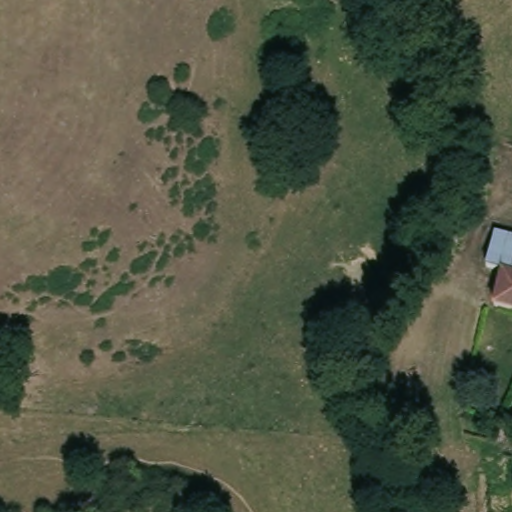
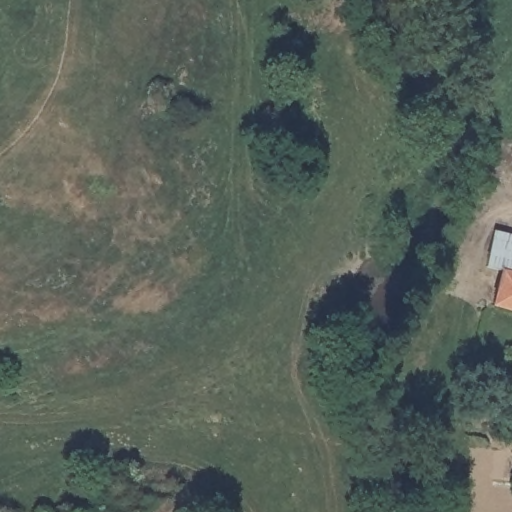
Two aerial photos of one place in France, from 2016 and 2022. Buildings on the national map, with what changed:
unchanged [(506,266),(504,266),(502,265),(488,262),(486,261),(488,252),(491,238),(494,224),(512,229),(512,268),(506,266)]
unchanged [(512,268),(512,307),(491,301),(506,266),(512,268)]

